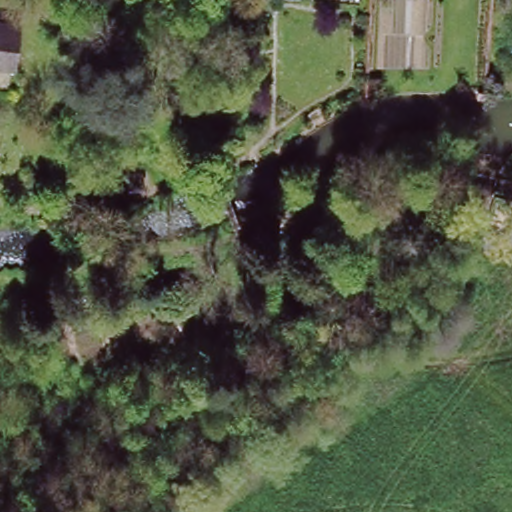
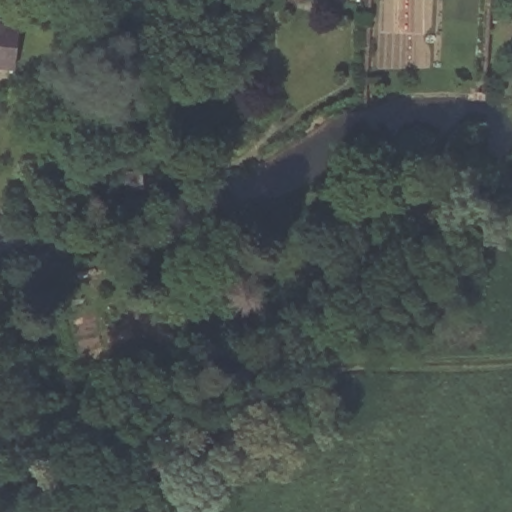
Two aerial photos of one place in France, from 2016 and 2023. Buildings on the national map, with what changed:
unchanged [(23,21),(18,64),(0,61),(0,17),(23,21)]

